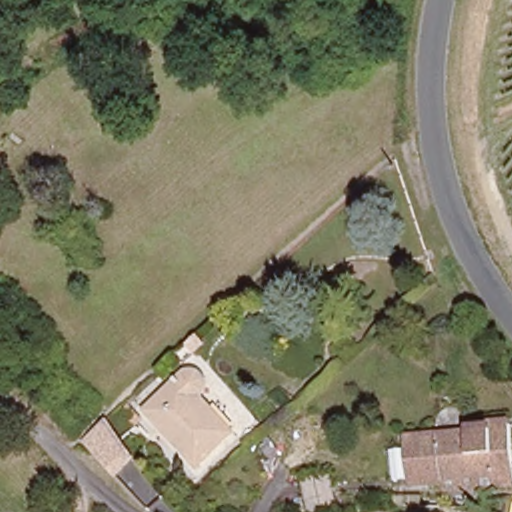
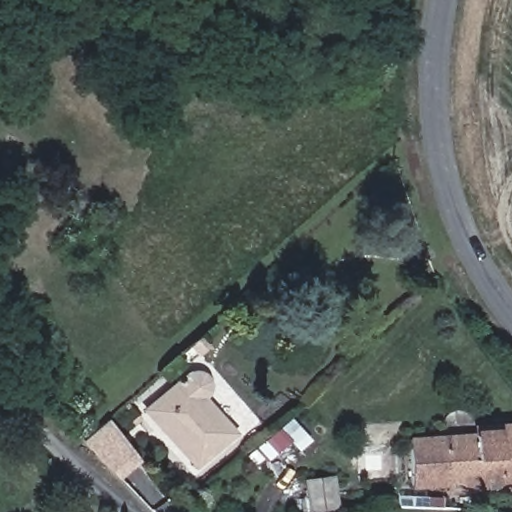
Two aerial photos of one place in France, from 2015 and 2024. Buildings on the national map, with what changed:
unchanged [(191,371),(196,373),(201,377),(202,385),(201,392),(195,399),(205,411),(210,407),(235,432),(197,468),(144,410),(181,373),(191,371)]
unchanged [(445,493),(443,482),(408,486),(406,433),(466,427),(465,417),(509,414),(512,446),(512,490),(445,493)]
unchanged [(104,424),(137,459),(119,476),(86,441),(104,424)]

